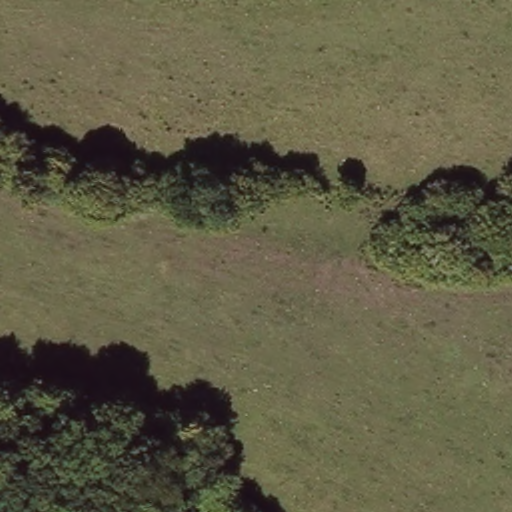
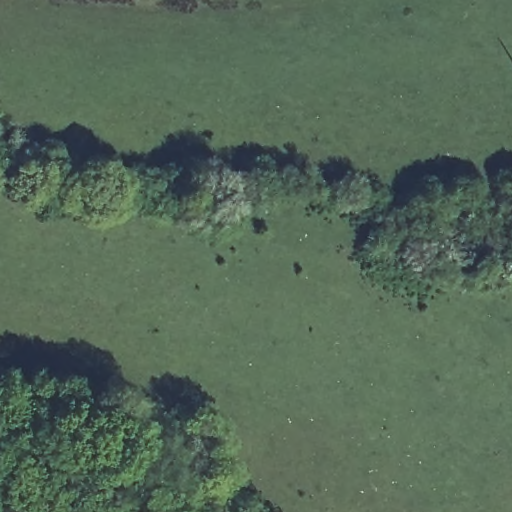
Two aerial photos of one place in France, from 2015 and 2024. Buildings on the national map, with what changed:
[]

